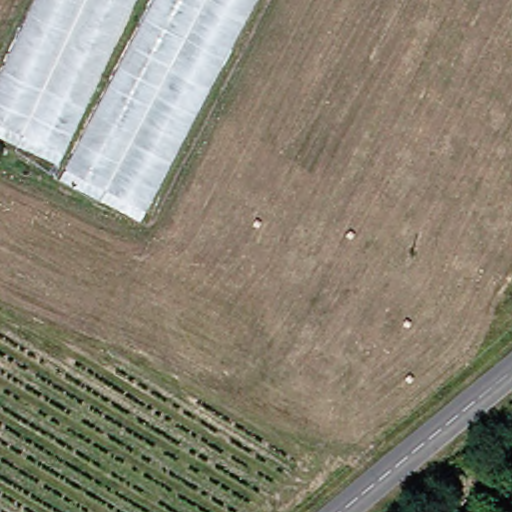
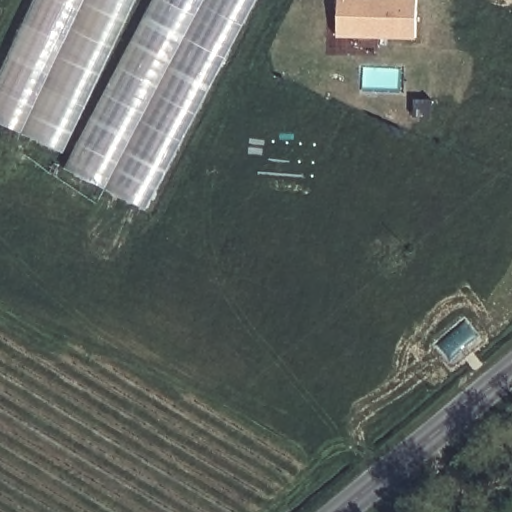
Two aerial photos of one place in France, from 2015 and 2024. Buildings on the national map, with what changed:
unchanged [(0,112),(0,88),(42,0),(139,0),(71,145),(0,112)]
unchanged [(72,163),(158,0),(261,0),(153,204),(72,163)]
new [(342,35),(343,0),(420,0),(420,36),(342,35)]

